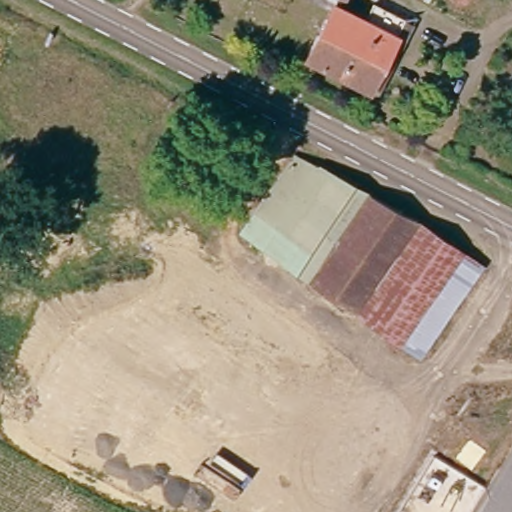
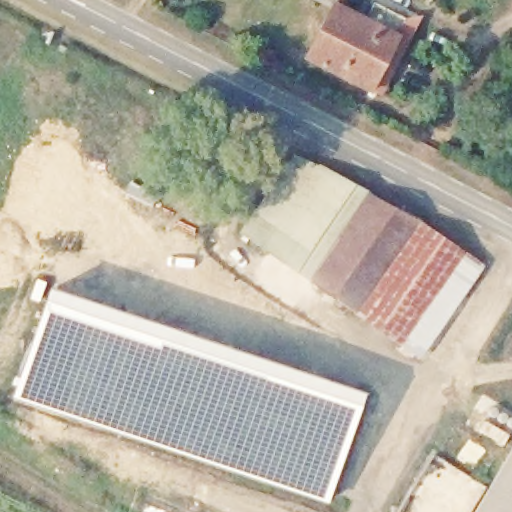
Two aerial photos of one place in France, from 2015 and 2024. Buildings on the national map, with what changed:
unchanged [(336,0),(341,0),(371,16),(379,0),(387,0),(407,11),(400,30),(404,32),(378,86),(360,78),(310,53),(336,0)]
unchanged [(394,206),(333,300),(246,243),(300,157),(394,206)]
unchanged [(394,206),(418,223),(357,316),(333,300),(394,206)]
unchanged [(418,223),(485,270),(425,360),(357,316),(418,223)]
new [(365,394),(328,503),(10,397),(47,289),(365,394)]
unchanged [(512,512),(482,512),(512,461),(512,512)]

